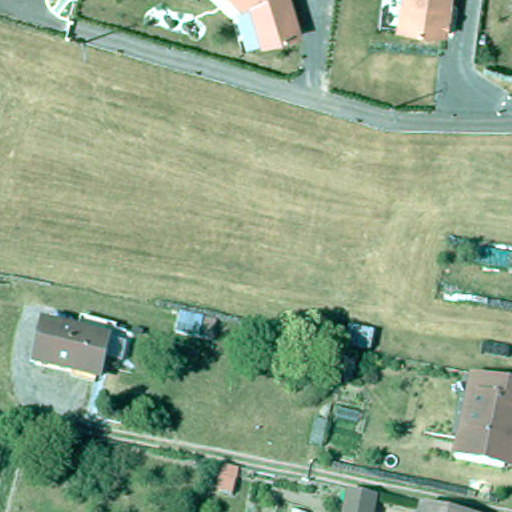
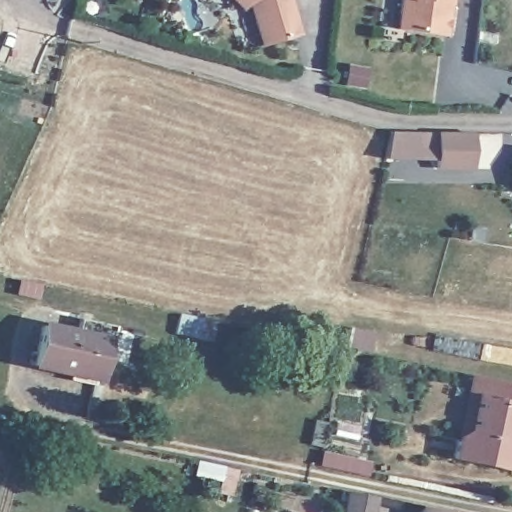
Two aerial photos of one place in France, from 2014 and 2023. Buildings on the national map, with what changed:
unchanged [(261,46),(249,2),(242,9),(233,0),(292,0),(302,34),(261,46)]
unchanged [(397,30),(402,0),(451,0),(450,5),(446,37),(397,30)]
new [(392,131),(436,131),(435,159),(384,158),(392,131)]
new [(472,170),(435,169),(436,131),(474,133),(472,170)]
unchanged [(200,340),(178,336),(182,315),(205,320),(200,340)]
unchanged [(107,339),(99,378),(35,364),(42,327),(79,335),(80,329),(82,319),(118,327),(116,337),(115,341),(107,339)]
unchanged [(480,379),(512,386),(512,455),(508,458),(505,471),(456,461),(459,450),(460,442),(470,435),(472,427),(474,416),(474,415),(477,399),(476,398),(471,390),(474,378),(480,379)]
unchanged [(377,512),(351,512),(355,494),(380,500),(377,512)]
unchanged [(428,505),(459,512),(427,512),(428,505)]

